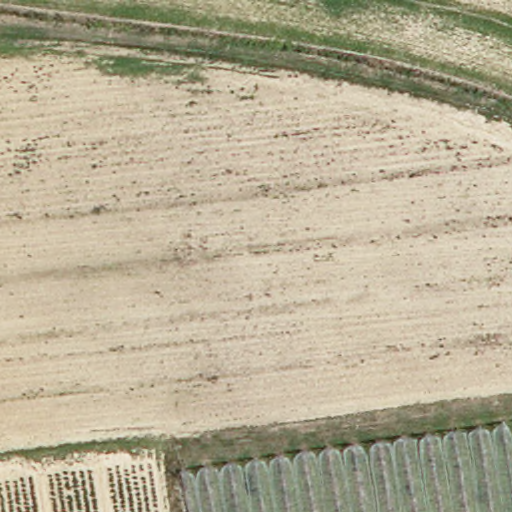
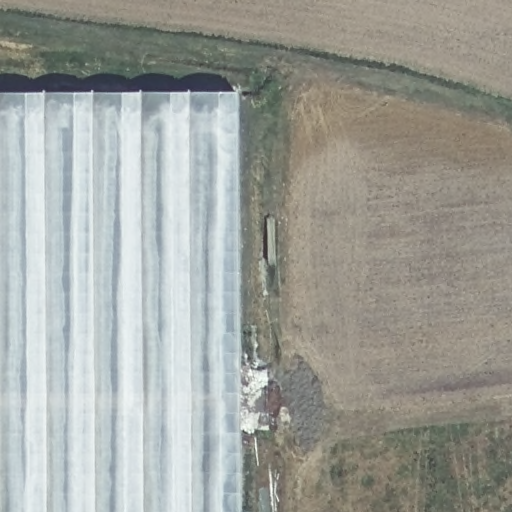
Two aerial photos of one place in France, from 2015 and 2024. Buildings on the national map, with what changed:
new [(0,92),(232,92),(233,512),(0,512),(0,92)]

